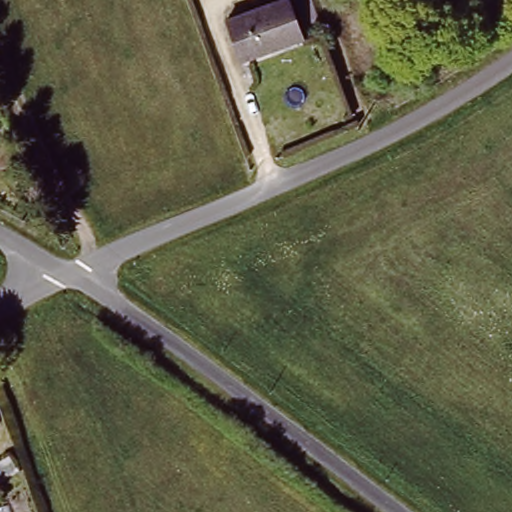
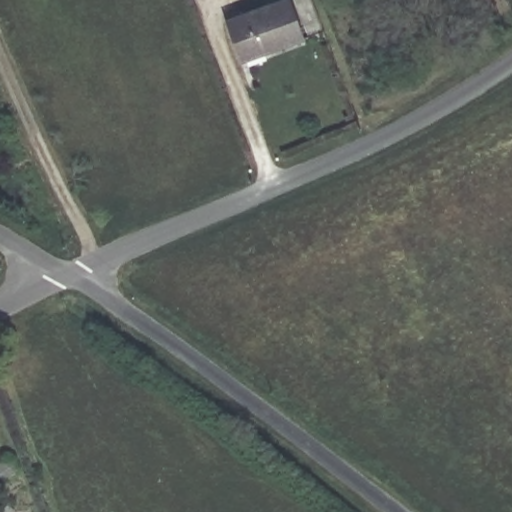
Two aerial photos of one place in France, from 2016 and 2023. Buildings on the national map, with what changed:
unchanged [(286,0),(288,0),(301,36),(241,59),(228,24),(286,0)]
unchanged [(8,457),(16,470),(0,481),(0,462),(8,457)]

